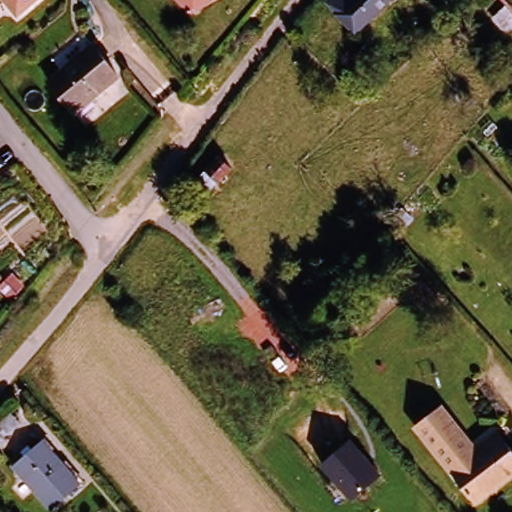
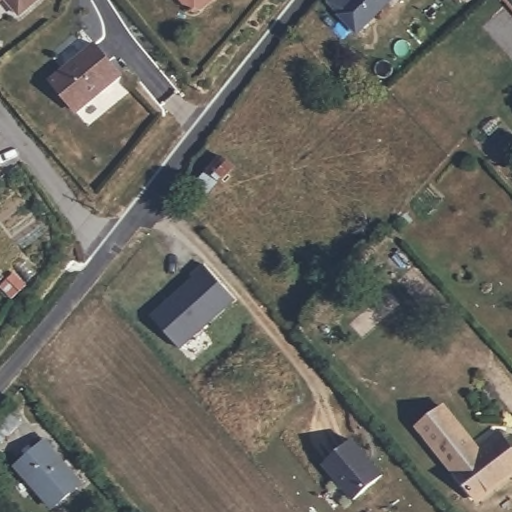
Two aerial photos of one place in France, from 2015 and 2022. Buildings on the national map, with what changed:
unchanged [(5,1),(0,5),(0,0),(41,0),(19,18),(5,1)]
unchanged [(328,0),(384,0),(354,28),(328,0)]
unchanged [(79,127),(56,99),(99,62),(125,92),(105,109),(81,129),(79,127)]
unchanged [(228,167),(214,181),(202,169),(215,155),(228,167)]
demolished [(224,186),(211,200),(199,189),(212,175),(224,186)]
new [(181,348),(151,316),(205,264),(236,300),(181,348)]
unchanged [(512,455),(512,479),(477,507),(454,478),(419,433),(444,414),(481,461),(487,456),(483,451),(499,439),(512,455)]
unchanged [(0,453),(0,434),(10,443),(0,453)]
unchanged [(351,439),(384,474),(353,501),(321,465),(351,439)]
unchanged [(80,483),(51,508),(14,468),(25,458),(21,453),(28,446),(33,451),(43,442),(80,483)]

